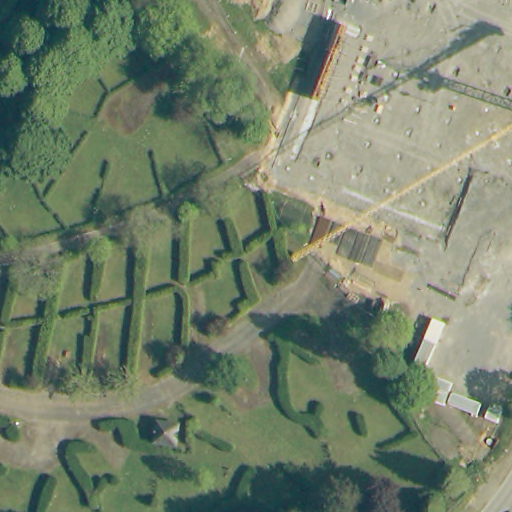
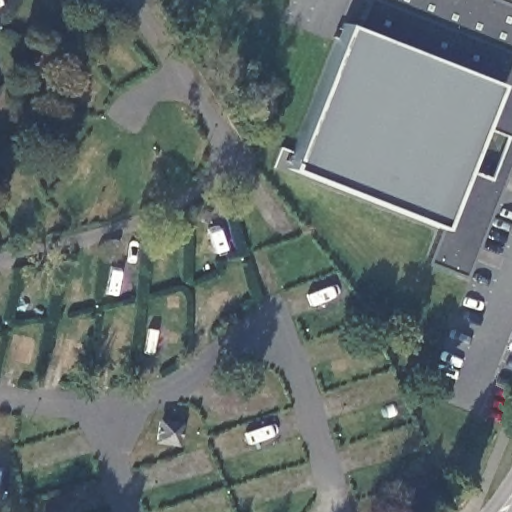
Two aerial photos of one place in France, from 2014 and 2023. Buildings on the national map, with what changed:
new [(465,276),(426,261),(441,227),(287,168),(342,24),(357,30),(368,0),(512,0),(512,154),(465,276)]
unchanged [(164,420),(162,437),(145,435),(146,418),(164,420)]

